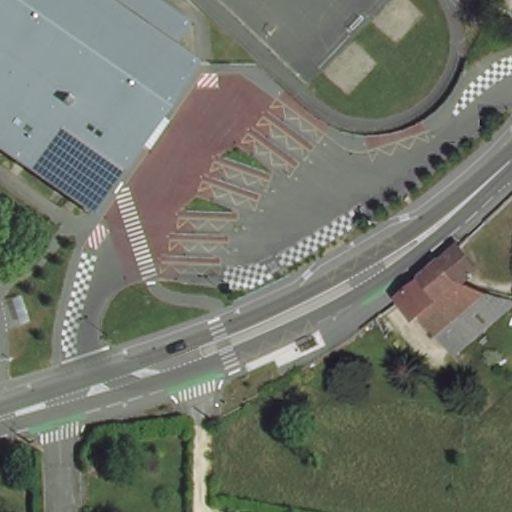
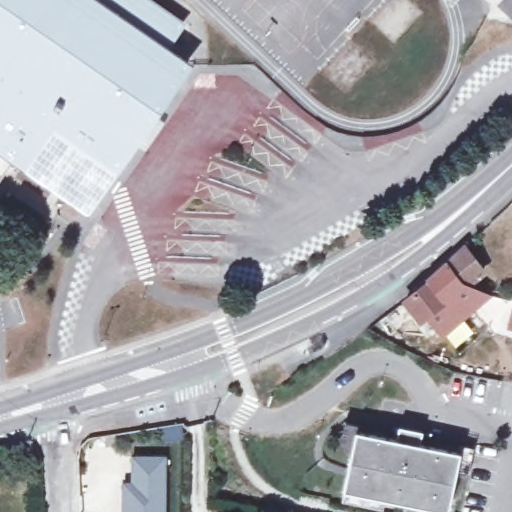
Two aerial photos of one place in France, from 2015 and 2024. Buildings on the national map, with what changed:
unchanged [(141,151),(128,143),(86,206),(13,158),(0,150),(0,0),(143,0),(173,21),(156,47),(181,65),(148,114),(161,123),(141,151)]
new [(13,158),(0,177),(0,150),(13,158)]
unchanged [(422,319),(407,299),(431,277),(429,274),(446,259),(463,243),(486,268),(467,283),(489,289),(442,331),(428,317),(422,319)]
new [(338,452),(344,423),(359,426),(358,433),(396,441),(398,428),(422,432),(418,446),(459,452),(460,447),(473,448),(467,478),(455,475),(446,512),(404,512),(405,505),(384,501),(383,512),(341,503),(349,455),(338,452)]
new [(128,486),(128,459),(159,459),(159,512),(119,512),(119,486),(128,486)]

